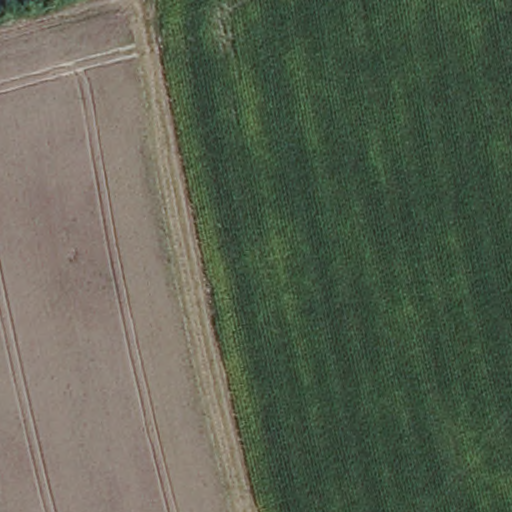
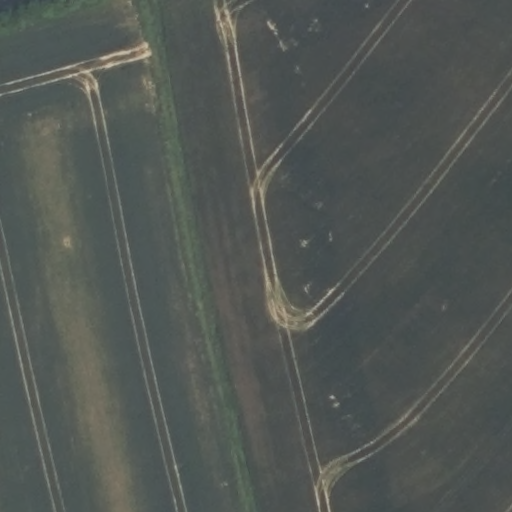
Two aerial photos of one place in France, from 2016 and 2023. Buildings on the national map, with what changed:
[]

